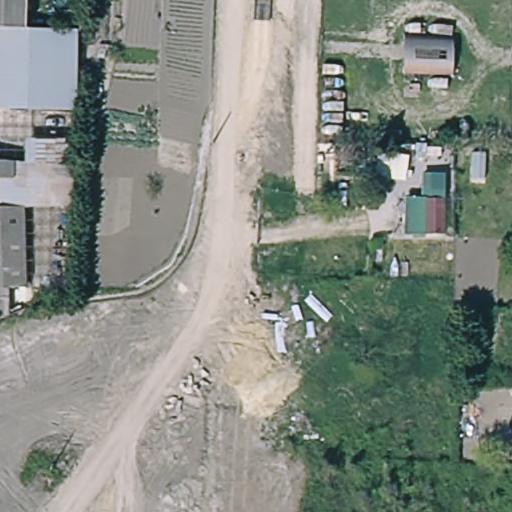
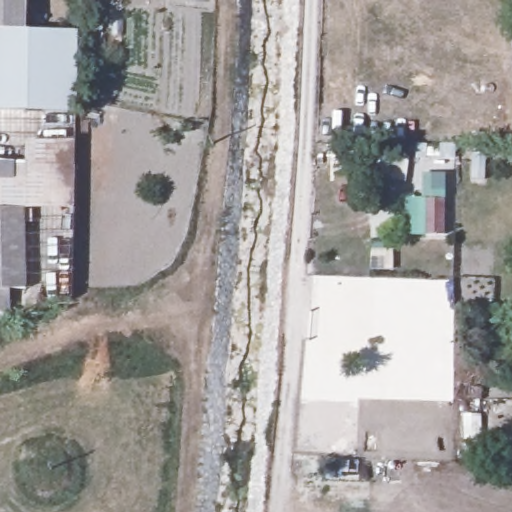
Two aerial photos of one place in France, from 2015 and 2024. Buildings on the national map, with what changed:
unchanged [(78,34),(73,113),(0,109),(0,0),(27,0),(29,32),(78,34)]
demolished [(454,37),(454,71),(404,71),(405,36),(454,37)]
unchanged [(73,144),(72,206),(21,209),(26,313),(6,316),(0,318),(0,158),(4,159),(8,140),(73,144)]
unchanged [(488,155),(487,180),(474,180),(475,155),(488,155)]
unchanged [(404,235),(405,196),(421,198),(422,170),(447,172),(444,234),(404,235)]
unchanged [(482,400),(483,435),(453,436),(453,401),(482,400)]
unchanged [(452,463),(452,443),(469,442),(470,463),(452,463)]

